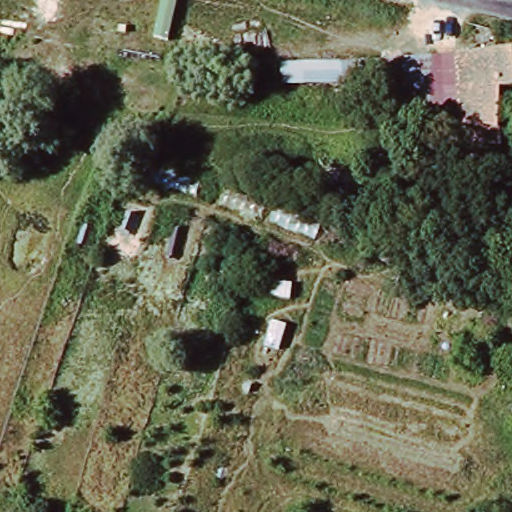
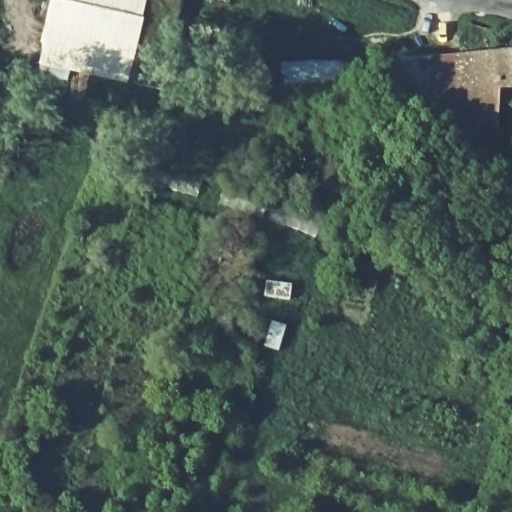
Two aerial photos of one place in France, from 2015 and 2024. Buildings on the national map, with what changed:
new [(52,0),(185,0),(165,89),(129,81),(127,85),(39,66),(52,0)]
unchanged [(495,89),(497,181),(462,172),(462,170),(453,54),(512,48),(512,88),(495,89)]
unchanged [(434,170),(431,147),(390,150),(387,89),(338,89),(338,96),(253,94),(256,63),(453,54),(462,170),(434,170)]

